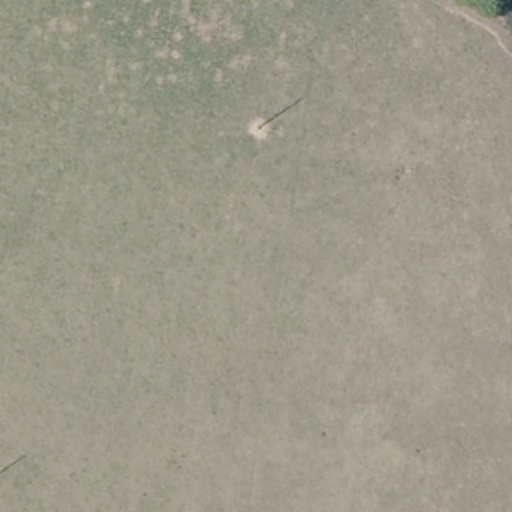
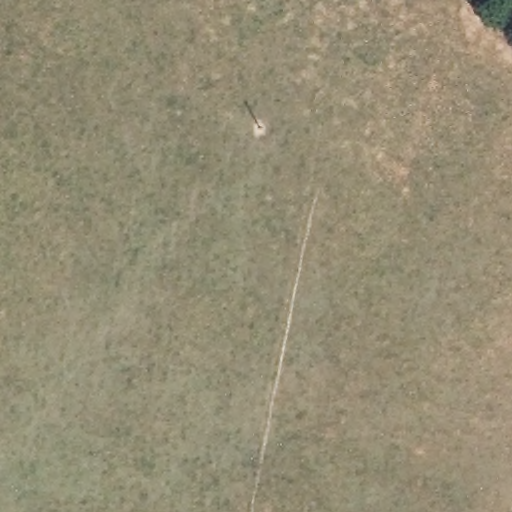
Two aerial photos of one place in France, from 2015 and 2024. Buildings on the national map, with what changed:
[]

